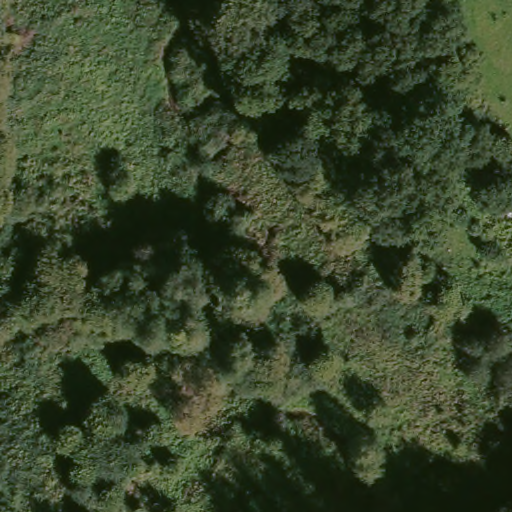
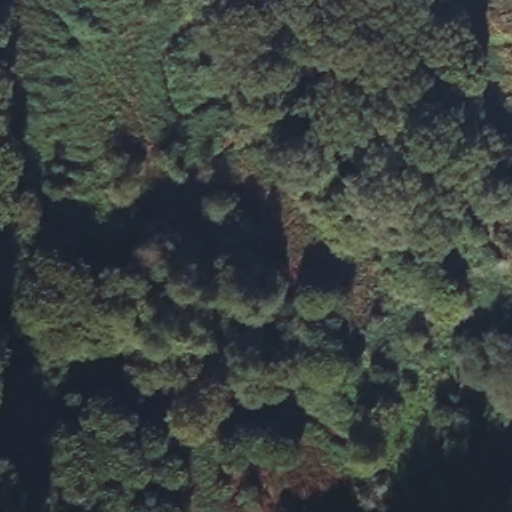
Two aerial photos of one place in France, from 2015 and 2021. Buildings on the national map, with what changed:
unchanged [(311,81),(304,66),(320,58),(328,73),(311,81)]

